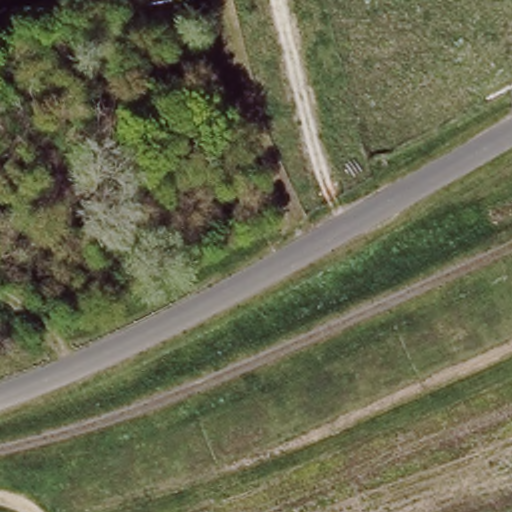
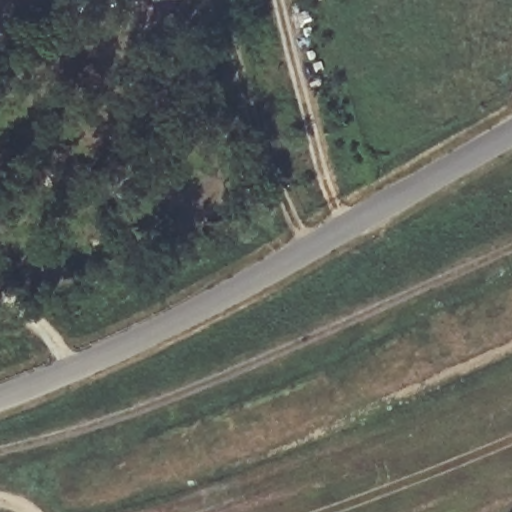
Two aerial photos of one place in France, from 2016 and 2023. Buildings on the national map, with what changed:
unchanged [(150,0),(153,0),(150,1),(150,0)]

